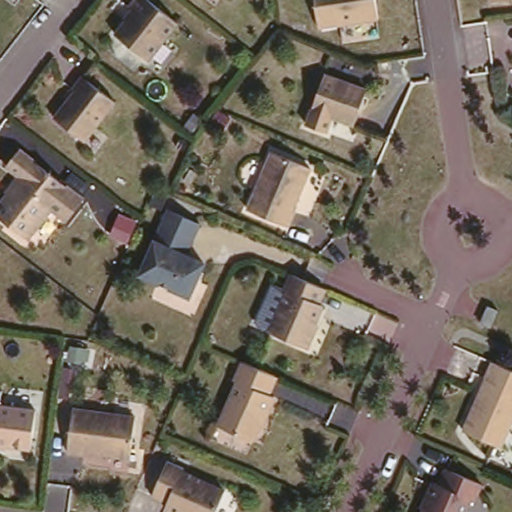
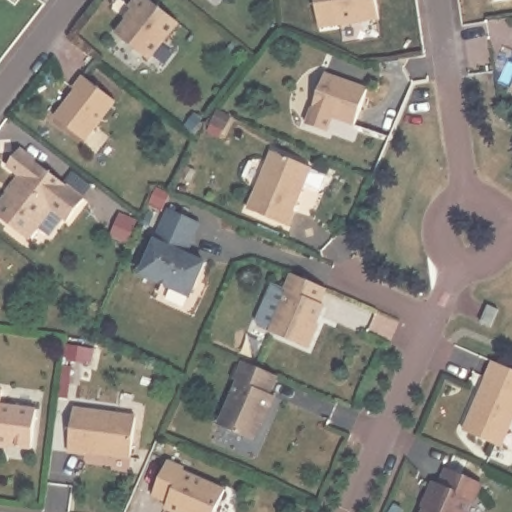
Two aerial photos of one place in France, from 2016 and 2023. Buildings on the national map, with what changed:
unchanged [(129,5),(133,0),(153,0),(179,20),(150,57),(116,32),(135,9),(129,5)]
unchanged [(378,0),(380,15),(320,24),(317,0),(378,0)]
unchanged [(55,119),(76,92),(74,90),(84,77),(117,102),(86,142),(55,119)]
unchanged [(325,80),(368,95),(355,130),(313,116),(325,80)]
unchanged [(11,185),(21,172),(8,163),(20,146),(85,195),(69,217),(52,205),(29,236),(0,214),(0,203),(10,190),(14,186),(11,185)]
unchanged [(310,170),(292,211),(295,212),(288,229),(247,210),(270,154),(310,170)]
unchanged [(197,226),(184,256),(202,265),(188,297),(140,275),(167,213),(197,226)]
unchanged [(324,290),(326,290),(320,305),(322,306),(313,327),(315,330),(307,347),(272,332),(289,292),(285,291),(292,275),(324,290)]
unchanged [(495,312),(486,328),(477,324),(485,306),(495,312)]
unchanged [(504,362),(512,366),(512,419),(501,445),(463,428),(487,375),(486,374),(493,357),(504,362)]
unchanged [(273,378),(265,397),(270,398),(260,418),(257,416),(247,440),(213,426),(232,383),(230,382),(238,363),(273,378)]
unchanged [(35,450),(0,445),(0,405),(40,410),(35,450)]
unchanged [(72,410),(135,417),(130,460),(84,453),(83,455),(66,453),(72,410)]
unchanged [(171,457),(188,464),(186,467),(229,486),(218,512),(188,512),(170,504),(172,498),(156,491),(171,457)]
unchanged [(423,497),(421,496),(429,479),(433,481),(442,466),(476,481),(470,498),(466,496),(459,512),(417,512),(423,497)]

